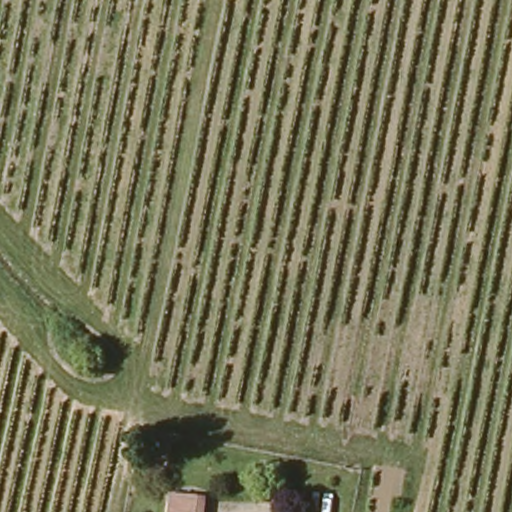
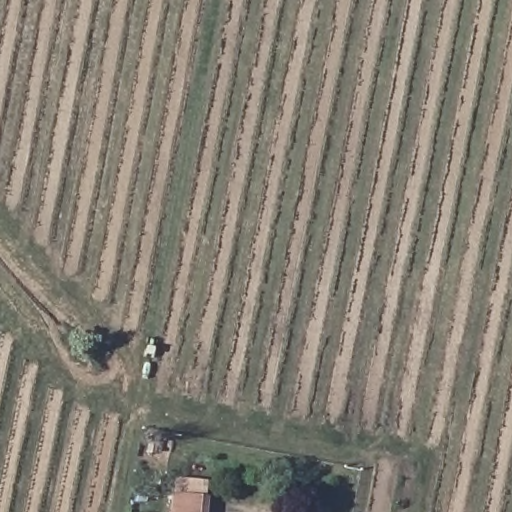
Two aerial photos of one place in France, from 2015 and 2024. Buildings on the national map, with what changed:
unchanged [(206,498),(205,512),(171,512),(173,496),(206,498)]

